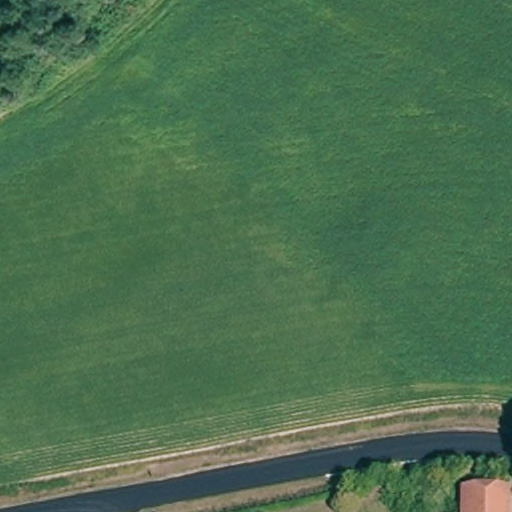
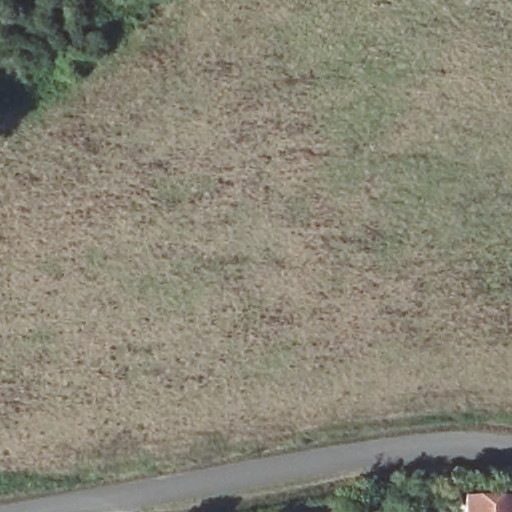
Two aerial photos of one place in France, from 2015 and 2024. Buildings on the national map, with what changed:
unchanged [(465,494),(512,496),(512,510),(512,512),(465,512),(465,494)]

